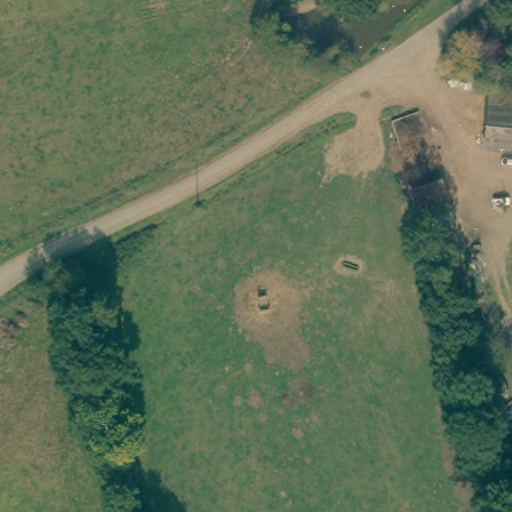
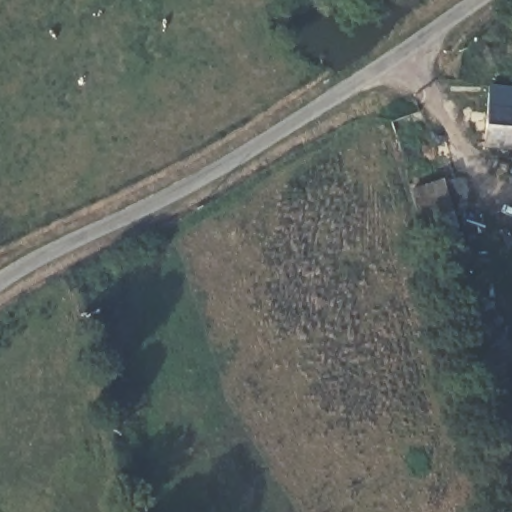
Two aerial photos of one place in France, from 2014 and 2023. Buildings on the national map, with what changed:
unchanged [(485,89),(510,90),(508,110),(512,110),(512,150),(481,148),(485,89)]
unchanged [(453,216),(446,219),(452,246),(437,250),(432,232),(427,233),(425,225),(422,227),(410,177),(440,169),(453,216)]
unchanged [(501,494),(492,462),(506,459),(512,480),(512,512),(505,512),(501,494)]

